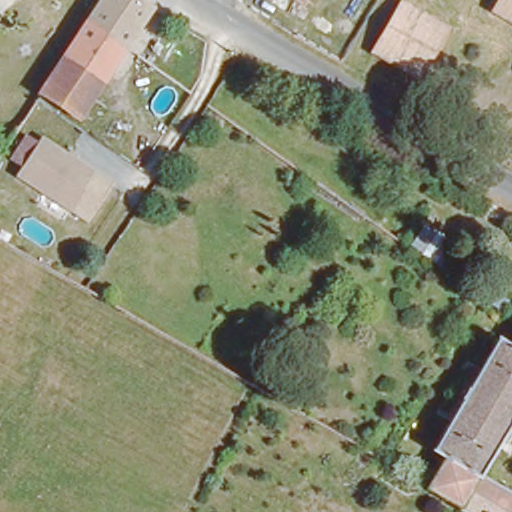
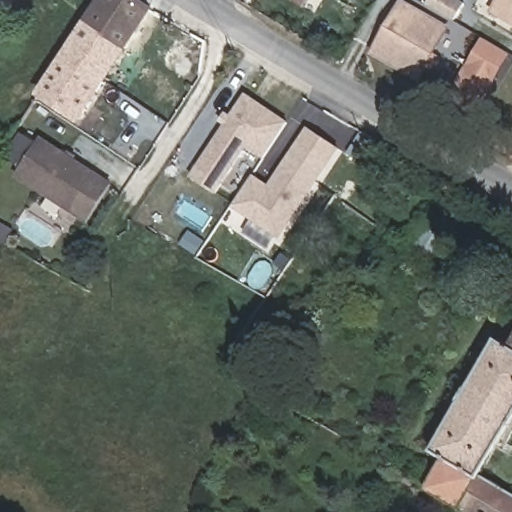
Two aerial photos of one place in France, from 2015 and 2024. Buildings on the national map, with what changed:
unchanged [(90,19),(102,0),(150,0),(124,42),(122,44),(88,22),(90,19)]
new [(455,0),(463,5),(454,19),(426,3),(428,0),(455,0)]
unchanged [(497,0),(512,0),(512,15),(495,5),(497,0)]
unchanged [(376,48),(403,1),(419,10),(445,26),(419,72),(390,56),(376,48)]
unchanged [(49,75),(85,26),(88,22),(122,44),(80,109),(42,84),(49,75)]
new [(465,63),(481,36),(504,50),(488,77),(487,77),(475,98),(452,85),(465,64),(465,63)]
new [(215,191),(191,174),(227,122),(221,118),(225,112),(231,116),(247,93),(288,122),(263,157),(247,145),(244,149),(215,191)]
new [(251,175),(267,186),(307,129),(336,149),(276,236),(230,204),(251,175)]
unchanged [(24,169),(11,161),(27,135),(40,144),(45,137),(115,181),(88,222),(17,179),(24,169)]
new [(432,231),(464,249),(461,254),(471,260),(463,276),(420,251),(432,231)]
unchanged [(483,470),(512,487),(512,512),(488,512),(438,483),(453,457),(450,455),(438,448),(453,423),(453,422),(490,366),(496,356),(509,336),(512,338),(512,426),(498,446),(483,470)]
unchanged [(402,462),(399,460),(390,455),(394,448),(395,447),(405,453),(415,459),(411,467),(402,462)]

